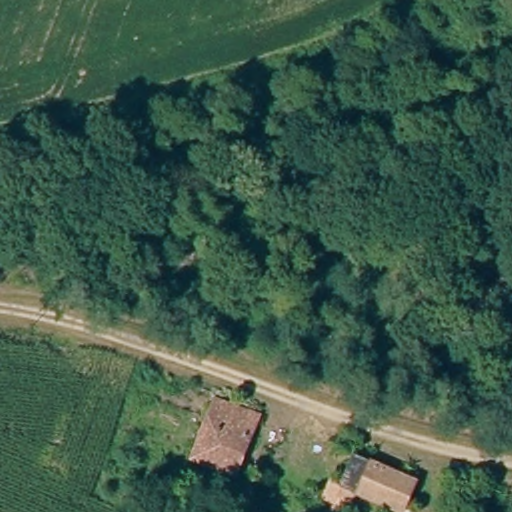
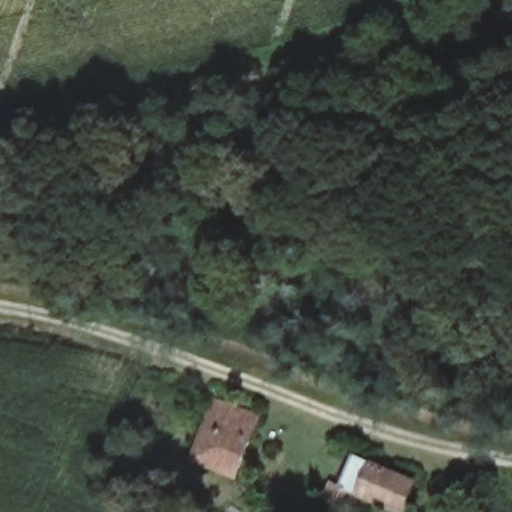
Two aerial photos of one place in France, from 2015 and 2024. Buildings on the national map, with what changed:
unchanged [(232,416),(253,422),(237,475),(195,462),(210,410),(232,416)]
unchanged [(419,481),(417,490),(409,512),(406,512),(374,500),(355,493),(366,464),(419,481)]

